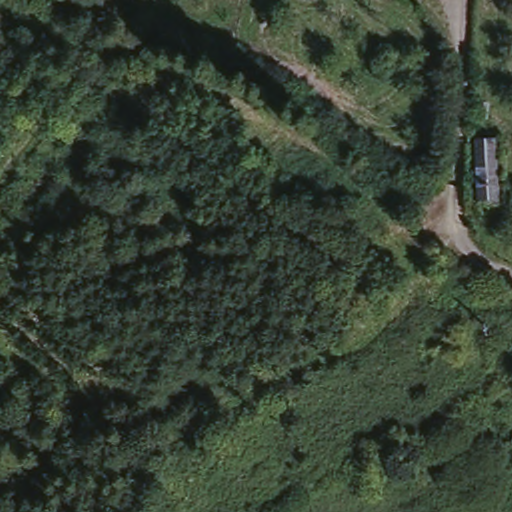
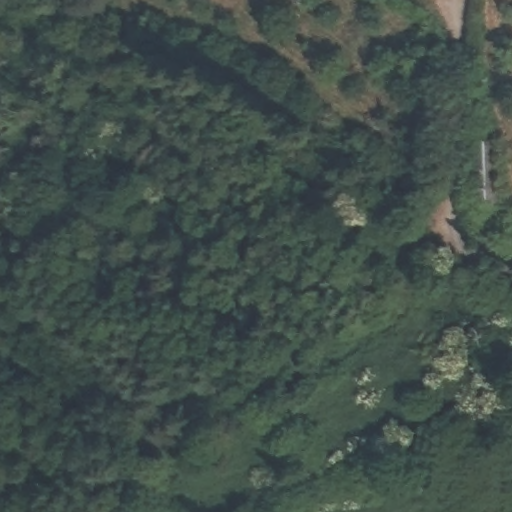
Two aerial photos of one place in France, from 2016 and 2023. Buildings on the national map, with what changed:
unchanged [(493,141),(497,203),(476,205),(472,142),(493,141)]

